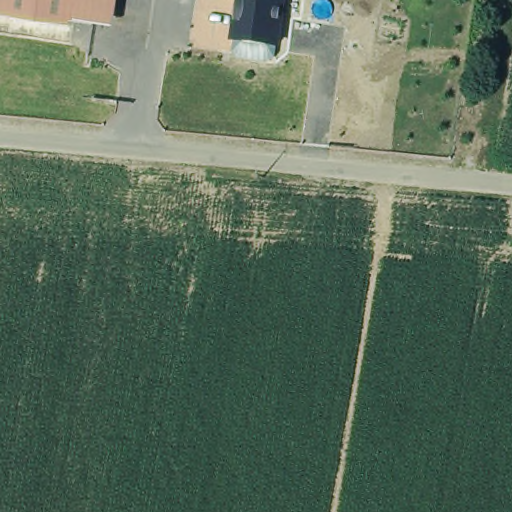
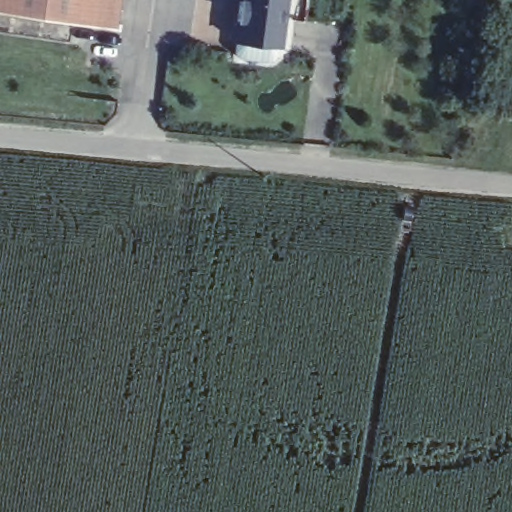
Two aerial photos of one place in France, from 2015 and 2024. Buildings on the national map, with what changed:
unchanged [(93,20),(0,6),(0,0),(96,0),(93,20)]
unchanged [(236,0),(285,0),(280,44),(232,40),(236,0)]

